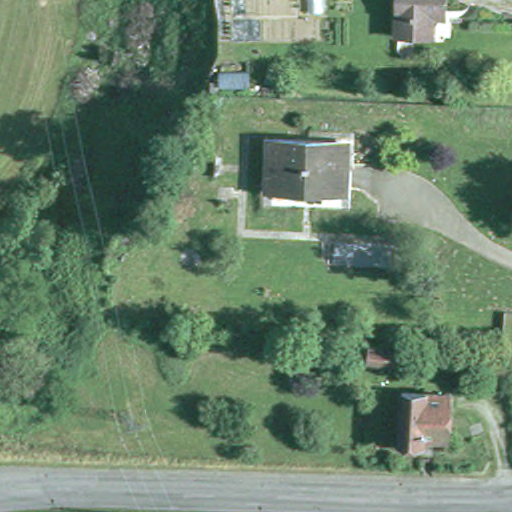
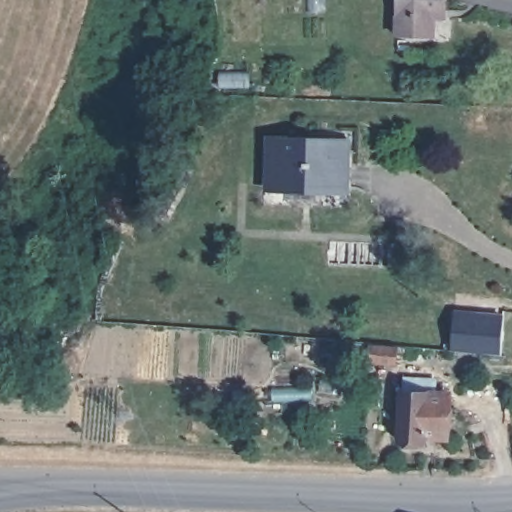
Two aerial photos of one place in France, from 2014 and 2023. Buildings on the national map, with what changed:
unchanged [(435,33),(399,35),(396,0),(443,0),(444,5),(444,11),(435,12),(435,33)]
unchanged [(276,184),(274,134),(337,133),(338,183),(276,184)]
unchanged [(276,202),(276,184),(338,183),(339,201),(276,202)]
new [(455,314),(504,319),(502,357),(452,352),(455,314)]
unchanged [(401,353),(399,373),(379,373),(379,353),(401,353)]
unchanged [(437,438),(437,446),(414,446),(414,398),(461,398),(460,438),(437,438)]

